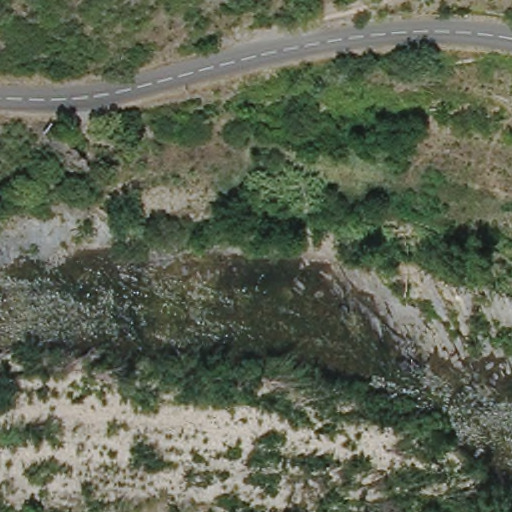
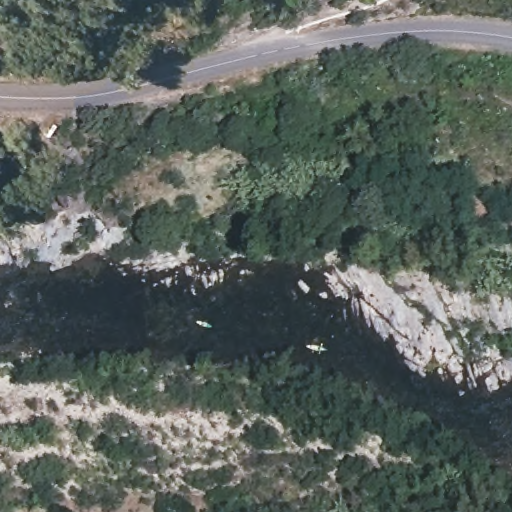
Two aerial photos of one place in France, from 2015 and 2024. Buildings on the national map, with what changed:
unchanged [(140,137),(139,128),(149,127),(149,137),(140,137)]

